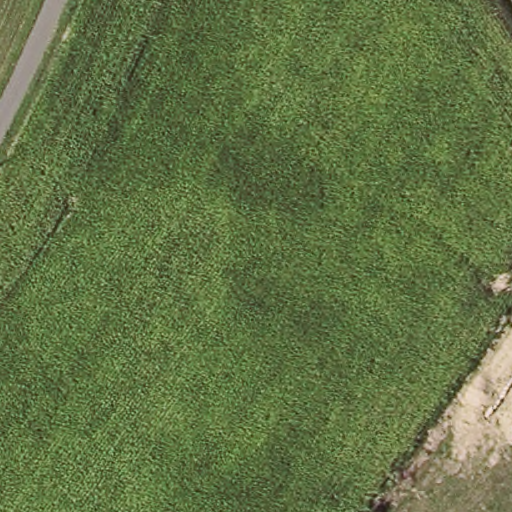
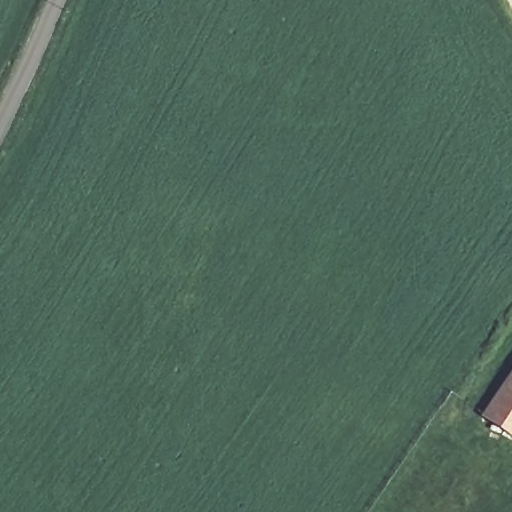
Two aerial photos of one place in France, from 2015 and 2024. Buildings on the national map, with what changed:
new [(482,417),(512,373),(512,437),(482,417)]

